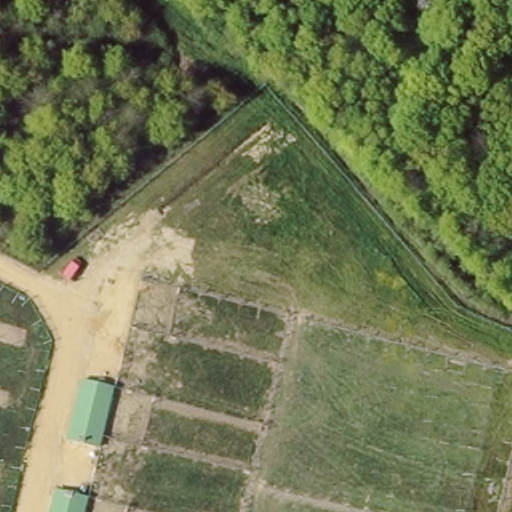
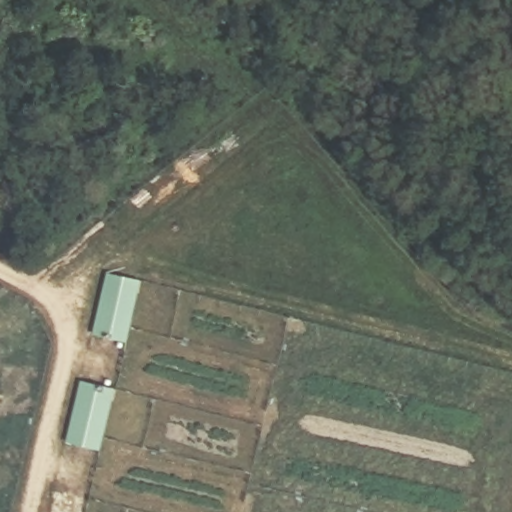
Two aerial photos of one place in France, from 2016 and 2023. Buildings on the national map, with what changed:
new [(92,333),(108,272),(142,279),(128,343),(92,333)]
unchanged [(55,490),(88,498),(84,512),(49,512),(55,490)]

